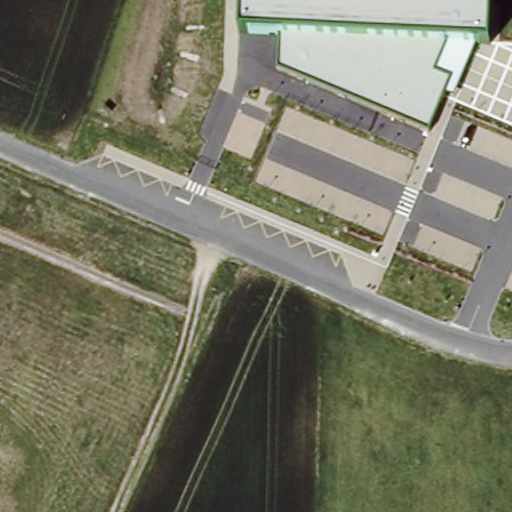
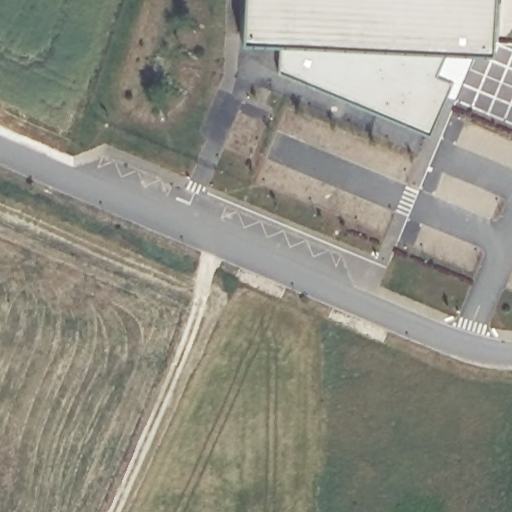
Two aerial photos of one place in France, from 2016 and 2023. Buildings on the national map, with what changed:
unchanged [(278,68),(285,31),(241,27),(242,0),(489,0),(488,39),(477,35),(455,95),(446,91),(431,129),(278,68)]

